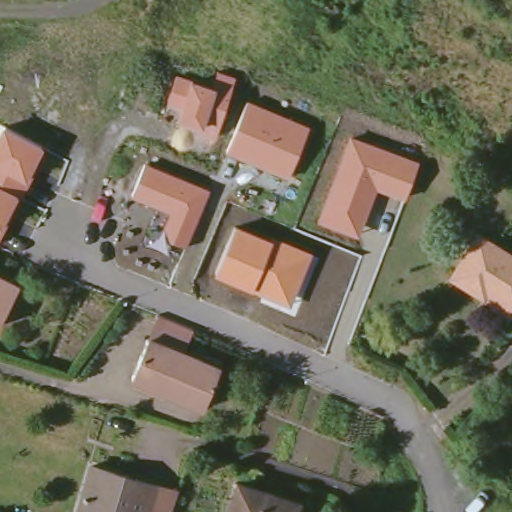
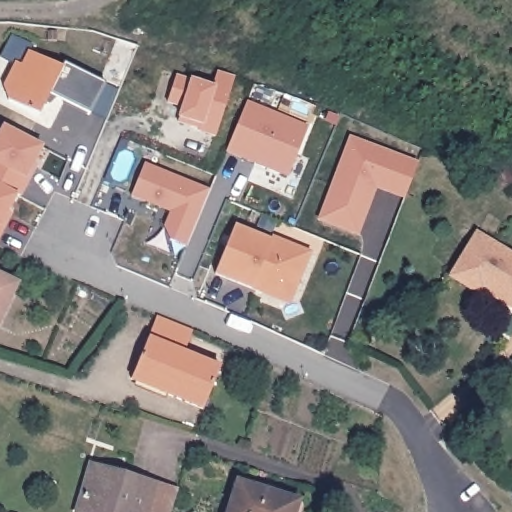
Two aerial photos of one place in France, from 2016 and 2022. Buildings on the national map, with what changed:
new [(47,94),(37,114),(7,100),(3,86),(13,64),(0,57),(12,34),(32,45),(30,52),(62,67),(64,64),(104,83),(117,90),(104,121),(87,113),(47,94)]
unchanged [(200,127),(177,122),(181,109),(170,104),(178,75),(192,80),(211,87),(217,72),(235,78),(216,139),(200,127)]
unchanged [(227,153),(248,102),(308,127),(288,178),(227,153)]
unchanged [(0,229),(0,231),(0,133),(3,126),(42,147),(25,179),(18,195),(0,229)]
unchanged [(317,222),(351,137),(418,162),(405,200),(377,190),(358,237),(317,222)]
unchanged [(209,189),(187,247),(172,242),(170,241),(164,227),(170,213),(132,197),(145,163),(209,189)]
unchanged [(236,224),(268,239),(271,236),(312,252),(290,303),(252,287),(252,291),(215,276),(236,224)]
unchanged [(482,300),(448,282),(472,237),(512,259),(512,311),(484,297),(482,300)]
unchanged [(16,284),(0,316),(0,276),(16,284)]
unchanged [(130,380),(148,340),(219,369),(202,409),(130,380)]
unchanged [(152,512),(82,512),(96,466),(160,485),(152,512)]
unchanged [(297,501),(293,512),(228,512),(237,482),(297,501)]

